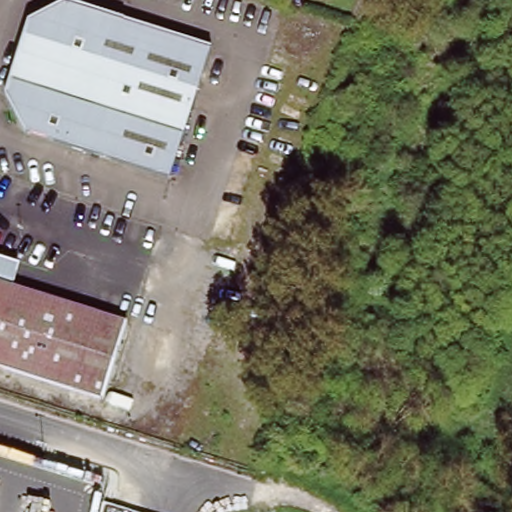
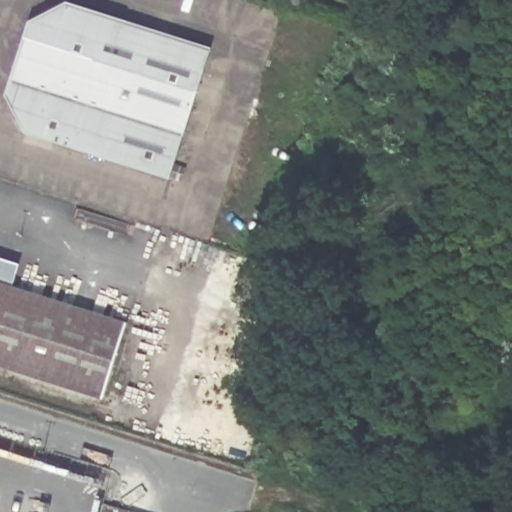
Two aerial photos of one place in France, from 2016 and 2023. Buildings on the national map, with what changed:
unchanged [(213,59),(167,184),(23,131),(6,89),(33,20),(72,6),(213,59)]
unchanged [(100,401),(0,364),(0,284),(126,329),(100,401)]

